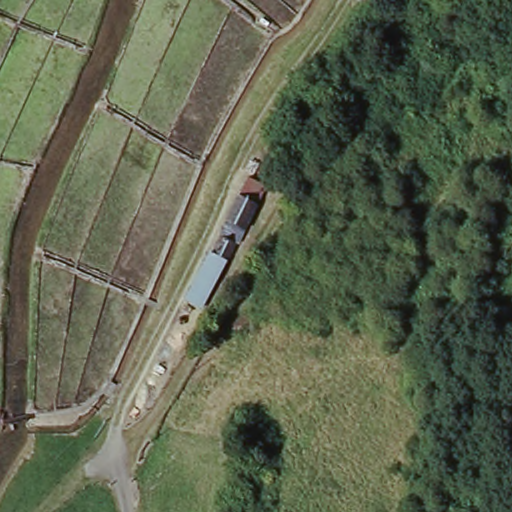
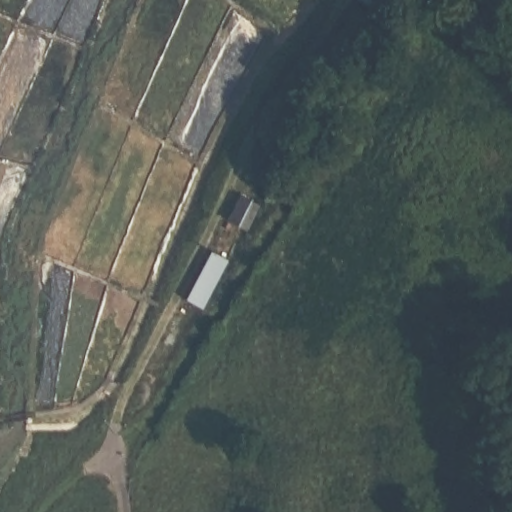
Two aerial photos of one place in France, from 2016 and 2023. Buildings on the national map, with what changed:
unchanged [(382,0),(371,15),(353,1),(354,0),(382,0)]
unchanged [(246,179),(264,187),(254,210),(237,202),(246,179)]
unchanged [(229,215),(248,225),(240,242),(221,234),(229,215)]
unchanged [(228,261),(202,309),(186,301),(213,254),(228,261)]

